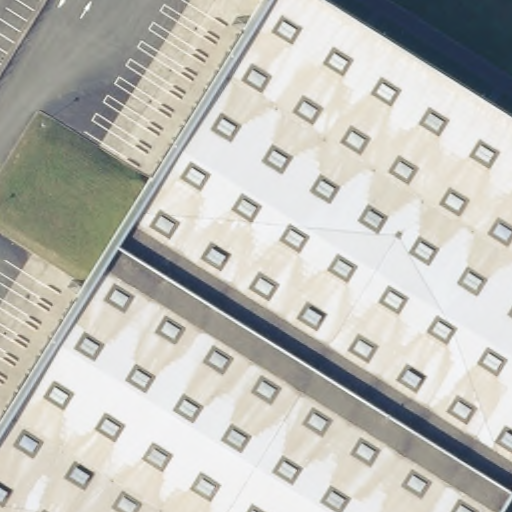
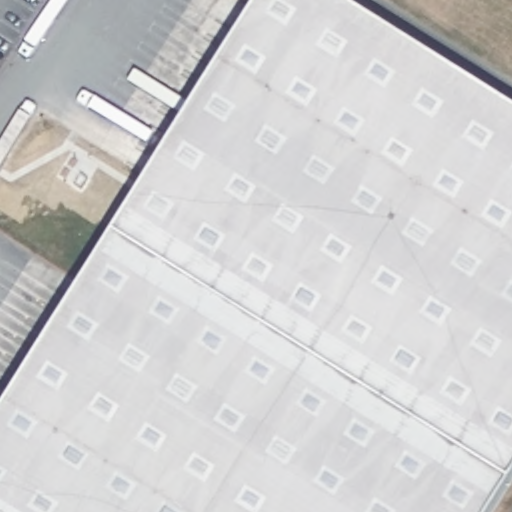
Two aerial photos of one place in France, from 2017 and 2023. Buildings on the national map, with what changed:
unchanged [(0,512),(0,417),(261,0),(331,0),(512,114),(512,483),(494,512),(0,512)]

